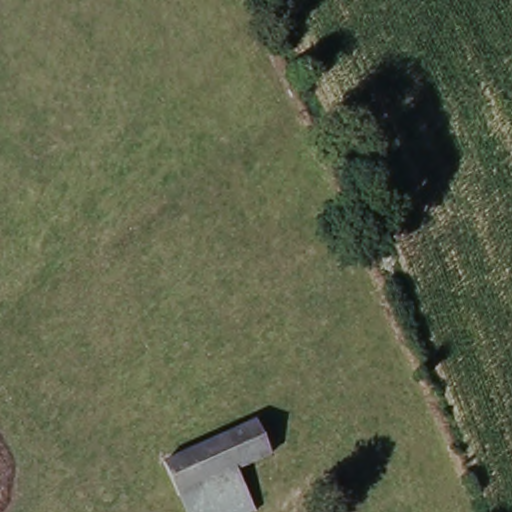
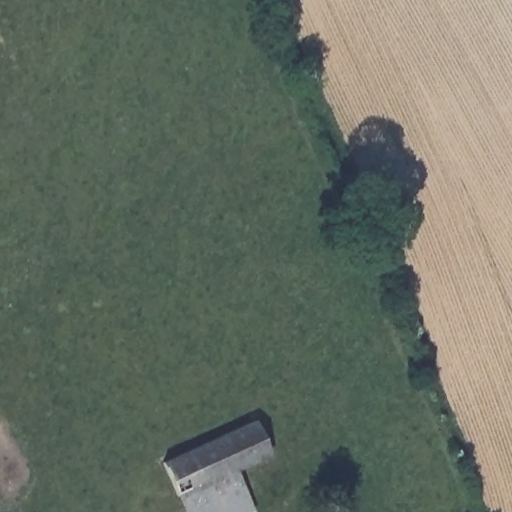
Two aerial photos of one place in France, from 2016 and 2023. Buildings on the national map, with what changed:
unchanged [(161,463),(254,425),(267,458),(235,472),(175,497),(161,463)]
unchanged [(235,472),(252,512),(182,512),(175,497),(235,472)]

